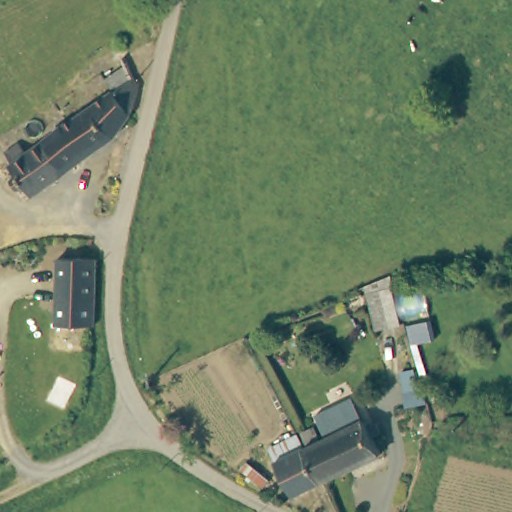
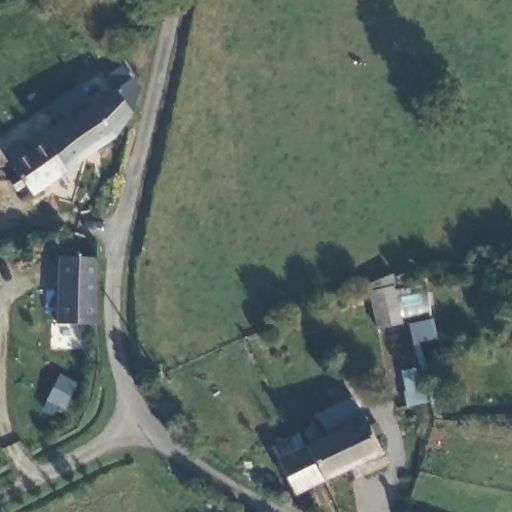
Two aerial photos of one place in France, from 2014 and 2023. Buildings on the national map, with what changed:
unchanged [(138,92),(133,115),(113,136),(33,195),(26,185),(16,192),(8,181),(15,175),(8,165),(12,162),(6,153),(20,142),(26,152),(106,93),(100,75),(124,61),(136,87),(138,92)]
unchanged [(96,258),(95,263),(94,327),(58,327),(57,259),(96,258)]
unchanged [(374,320),(368,285),(389,281),(392,280),(399,316),(395,317),(374,320)]
unchanged [(416,373),(418,395),(411,395),(408,395),(405,374),(407,374),(416,373)]
unchanged [(300,430),(314,423),(320,436),(362,416),(380,451),(321,478),(290,492),(275,458),(269,444),(289,435),(293,433),(299,446),(306,443),(300,430)]

